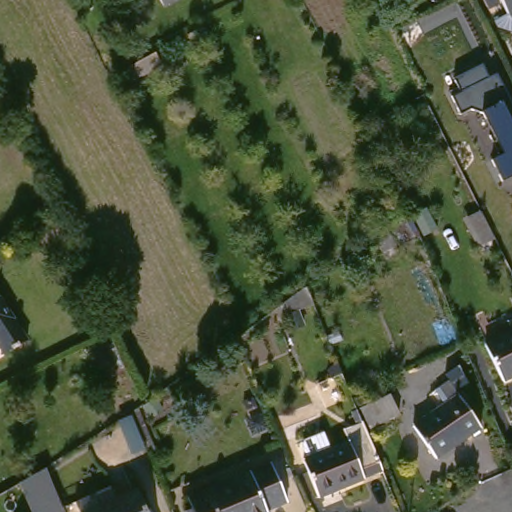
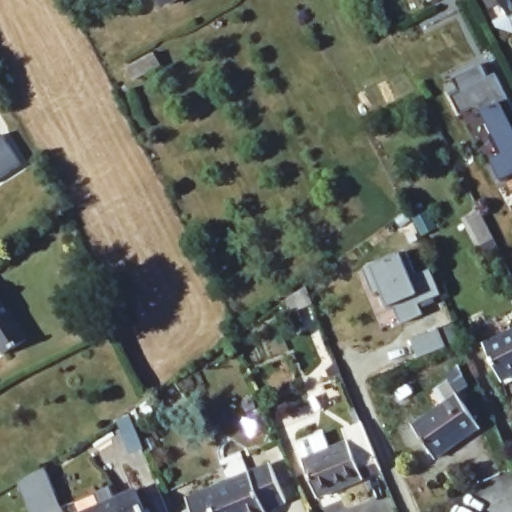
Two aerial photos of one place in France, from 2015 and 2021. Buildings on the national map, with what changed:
unchanged [(162,0),(180,0),(167,8),(162,0)]
unchanged [(491,161),(506,154),(487,114),(472,110),(459,115),(450,96),(460,91),(455,80),(481,67),(487,78),(496,73),(512,104),(512,122),(511,123),(512,125),(512,177),(502,182),(491,161)]
new [(6,132),(26,162),(0,180),(0,136),(6,132)]
unchanged [(491,246),(476,216),(494,207),(509,237),(491,246)]
new [(424,304),(427,311),(396,323),(381,287),(369,292),(358,265),(411,244),(421,271),(435,265),(445,292),(437,294),(439,299),(424,304)]
unchanged [(10,280),(42,337),(22,349),(10,329),(0,334),(0,286),(10,280)]
unchanged [(512,379),(494,348),(512,338),(512,379)]
unchanged [(456,402),(445,386),(458,378),(489,424),(443,456),(423,424),(456,402)]
unchanged [(314,444),(317,439),(336,431),(343,447),(365,438),(359,425),(380,417),(390,444),(397,461),(377,468),(379,474),(330,494),(315,458),(319,456),(314,444)]
unchanged [(140,456),(127,424),(140,419),(148,438),(153,451),(140,456)]
unchanged [(287,465),(301,502),(278,511),(278,512),(205,512),(200,498),(287,465)]
unchanged [(130,481),(136,495),(150,489),(158,512),(93,512),(92,511),(87,497),(130,481)]

